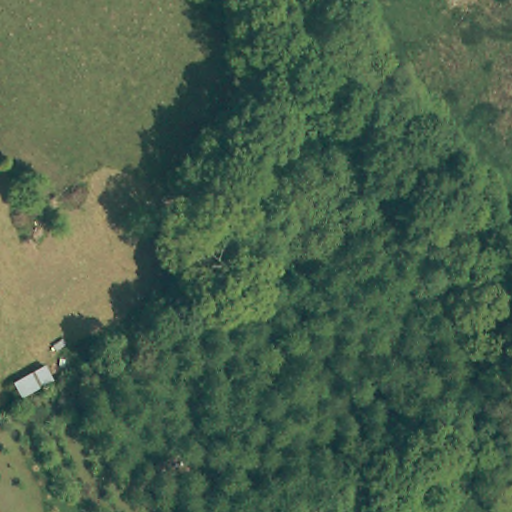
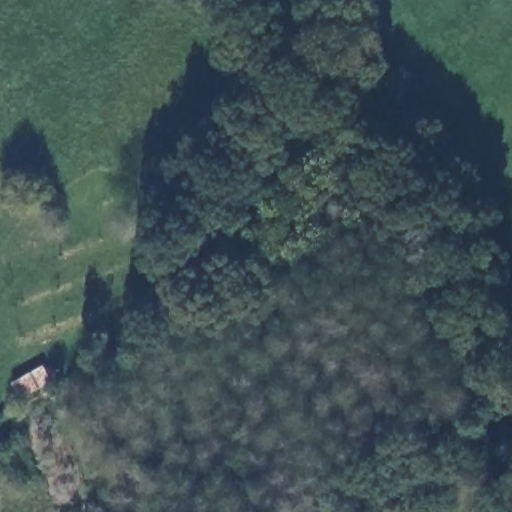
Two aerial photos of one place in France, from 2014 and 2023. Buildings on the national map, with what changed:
unchanged [(14,386),(41,370),(50,385),(23,401),(14,386)]
unchanged [(1,492),(2,512),(0,512),(0,492),(1,492)]

